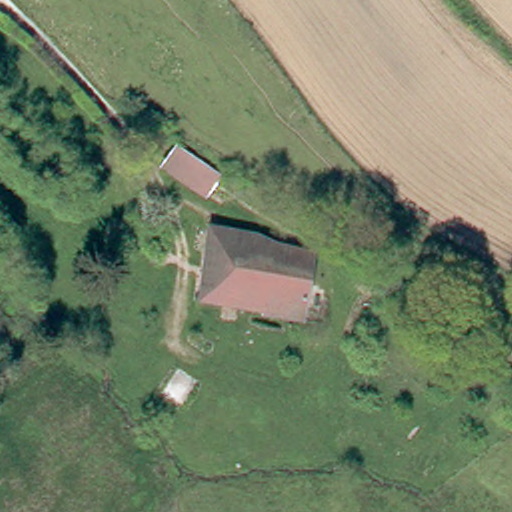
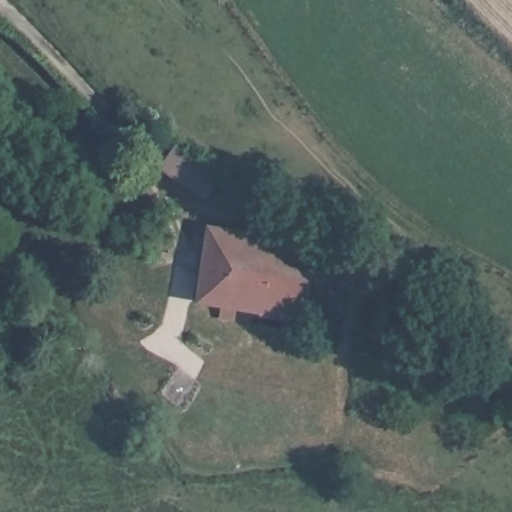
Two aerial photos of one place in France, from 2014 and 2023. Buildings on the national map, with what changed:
unchanged [(217,199),(200,187),(200,189),(157,160),(170,142),(212,172),(227,182),(217,199)]
unchanged [(263,308),(218,300),(199,296),(200,287),(210,223),(254,232),(270,238),(292,245),(313,250),(301,317),(262,311),(263,308)]

